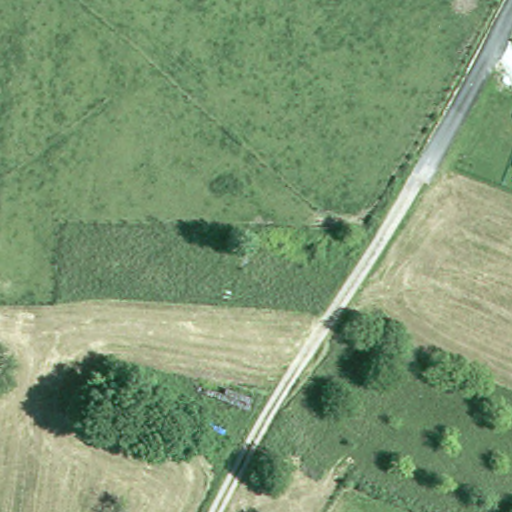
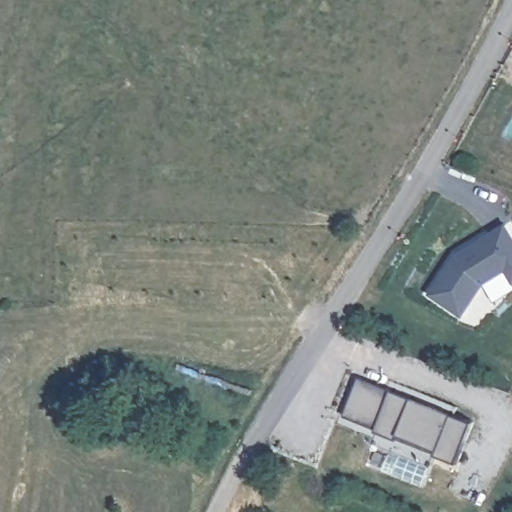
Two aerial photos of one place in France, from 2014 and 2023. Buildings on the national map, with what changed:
new [(482,284),(462,315),(429,292),(455,254),(505,222),(512,233),(512,280),(507,271),(482,284)]
new [(391,389),(473,421),(458,462),(437,453),(438,449),(400,434),(397,437),(375,428),(376,427),(345,414),(359,376),(391,389)]

